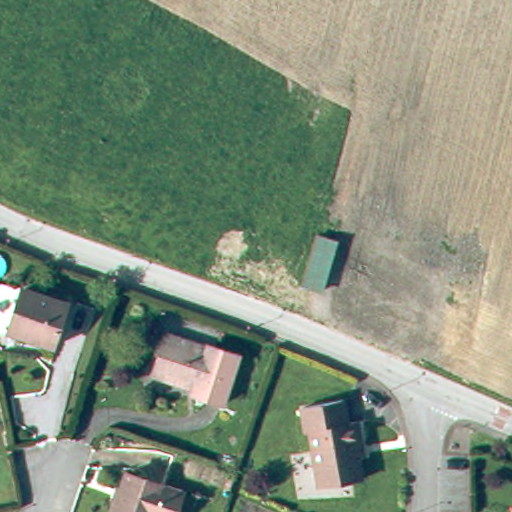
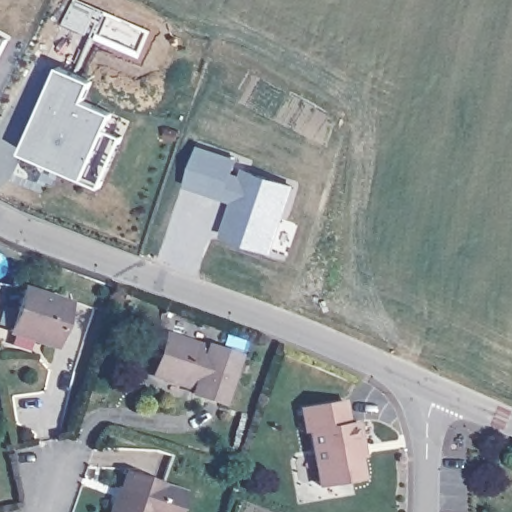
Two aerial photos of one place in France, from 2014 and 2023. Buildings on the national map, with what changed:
new [(7,40),(0,54),(0,36),(7,40)]
new [(22,152),(60,67),(93,81),(85,102),(112,114),(85,179),(22,152)]
new [(190,184),(201,149),(236,161),(231,176),(246,180),(249,172),(292,187),(271,250),(225,235),(233,212),(237,200),(190,184)]
unchanged [(67,300),(53,344),(9,330),(21,287),(67,300)]
unchanged [(210,348),(210,347),(242,357),(226,406),(195,395),(198,386),(190,383),(189,386),(165,377),(157,375),(163,357),(170,335),(210,348)]
unchanged [(366,451),(361,452),(365,473),(322,480),(313,425),(310,426),(305,401),(346,394),(350,417),(360,416),(363,435),(366,451)]
unchanged [(177,484),(168,512),(129,512),(142,472),(177,484)]

